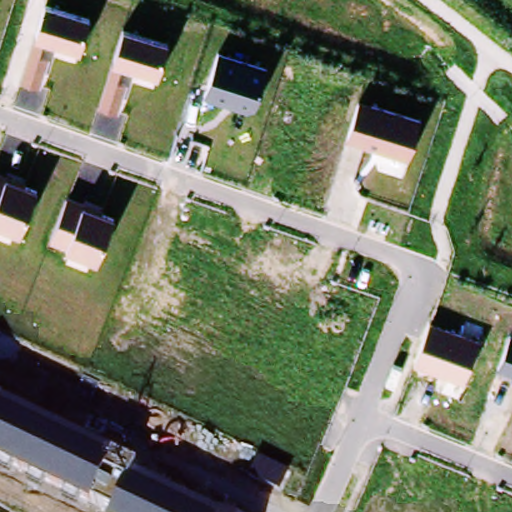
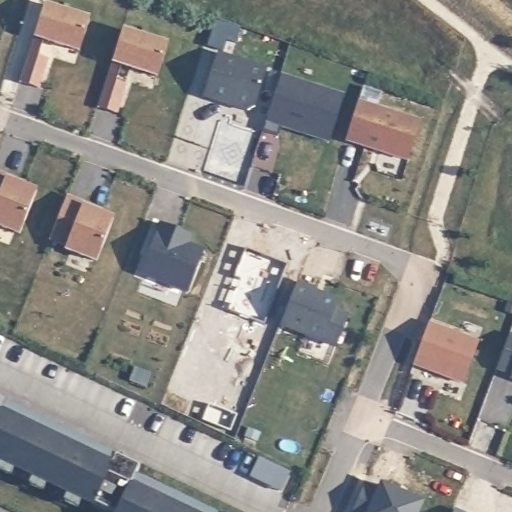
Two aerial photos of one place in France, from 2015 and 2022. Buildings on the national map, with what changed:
unchanged [(90,17),(80,54),(45,42),(40,55),(48,59),(40,89),(20,83),(45,2),(90,17)]
new [(237,43),(228,40),(225,51),(208,46),(216,22),(240,30),(237,43)]
unchanged [(168,44),(158,79),(122,68),(118,82),(126,85),(118,114),(99,109),(123,28),(168,44)]
unchanged [(267,68),(253,113),(205,98),(217,53),(267,68)]
new [(263,132),(280,77),(343,96),(330,143),(282,128),(278,137),(263,132)]
unchanged [(421,120),(408,161),(347,140),(360,100),(421,120)]
unchanged [(0,227),(0,170),(25,180),(23,184),(37,189),(21,235),(0,227)]
unchanged [(98,262),(65,249),(52,240),(67,195),(103,208),(101,212),(115,218),(98,262)]
new [(205,252),(188,294),(140,274),(160,224),(191,237),(187,245),(205,252)]
new [(280,326),(297,283),(312,289),(312,291),(337,302),(333,312),(347,317),(335,347),(280,326)]
unchanged [(480,340),(464,382),(415,364),(430,321),(480,340)]
unchanged [(497,368),(510,334),(512,335),(512,374),(497,368)]
unchanged [(511,377),(512,374),(512,377),(511,377)]
unchanged [(4,411),(140,467),(137,477),(209,512),(100,512),(0,466),(0,398),(7,402),(4,411)]
new [(287,474),(279,493),(251,480),(260,461),(287,474)]
new [(420,512),(354,512),(365,485),(379,489),(382,484),(425,502),(420,512)]

